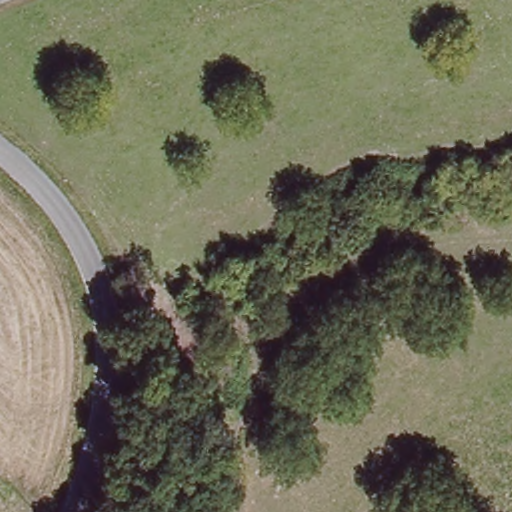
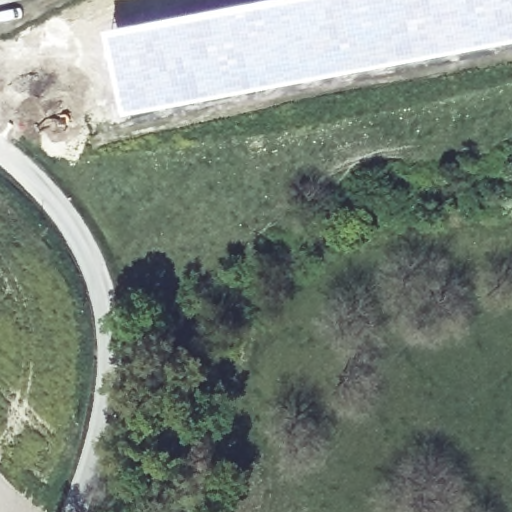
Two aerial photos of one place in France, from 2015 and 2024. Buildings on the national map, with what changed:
new [(512,0),(512,42),(481,48),(383,65),(129,113),(112,30),(268,0),(512,0)]

